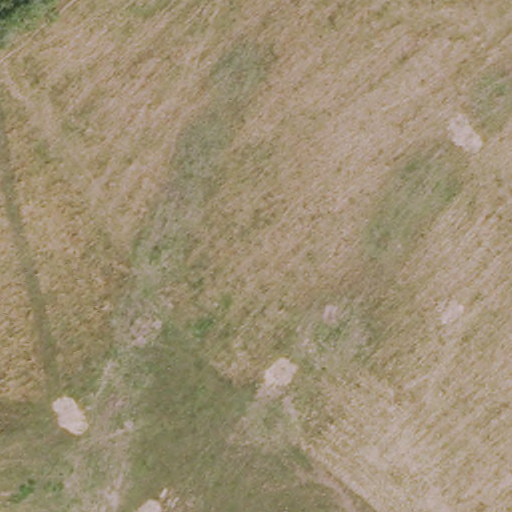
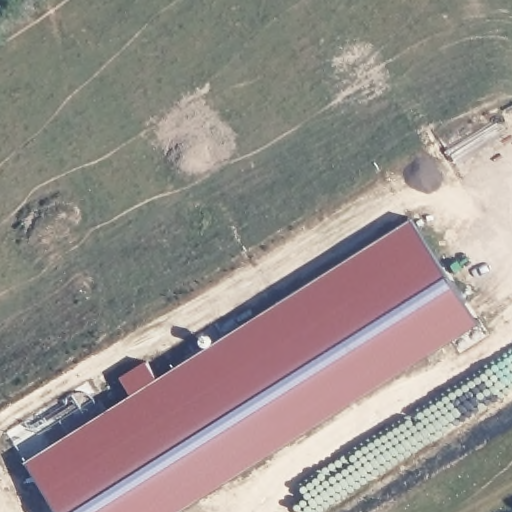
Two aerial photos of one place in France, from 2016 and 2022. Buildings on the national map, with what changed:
new [(180,511),(181,512),(63,512),(31,459),(136,392),(124,374),(148,360),(159,377),(413,218),(478,322),(180,511)]

